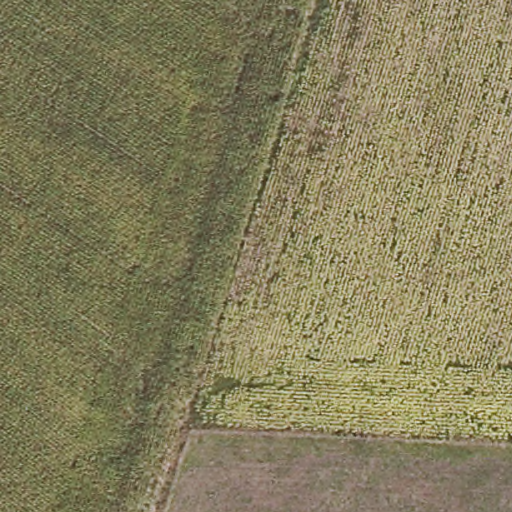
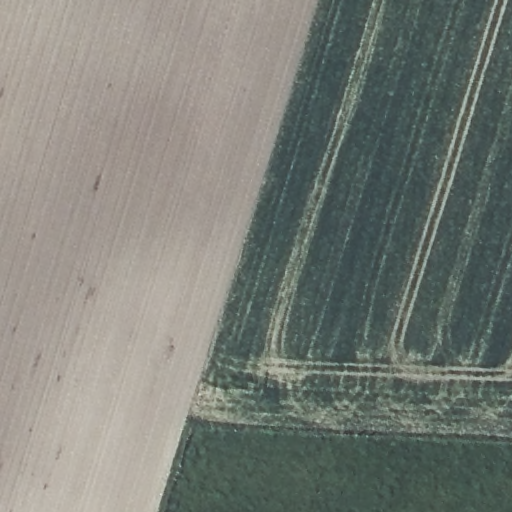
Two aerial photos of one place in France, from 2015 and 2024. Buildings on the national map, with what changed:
[]

